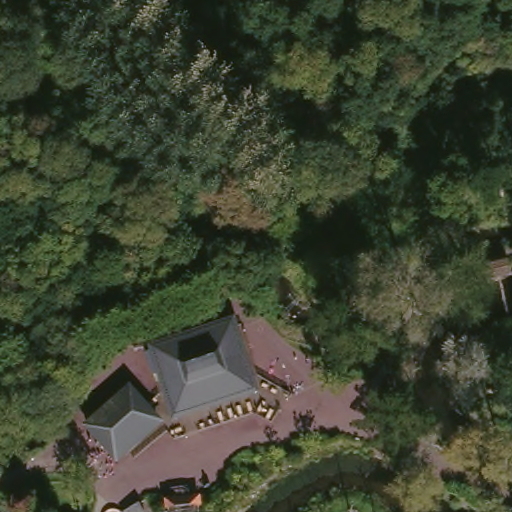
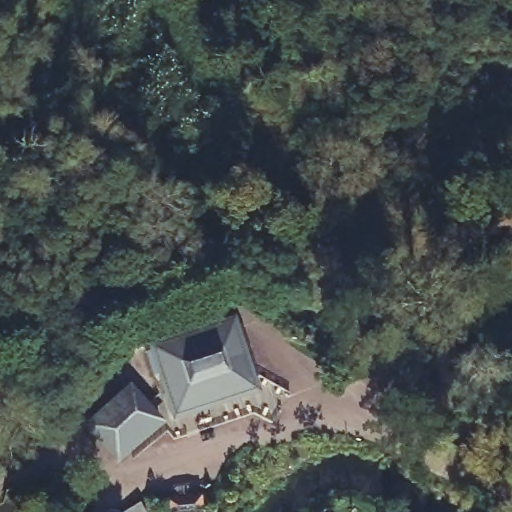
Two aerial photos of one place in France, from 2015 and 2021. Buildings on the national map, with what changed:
unchanged [(145,344),(225,319),(251,396),(168,422),(145,344)]
unchanged [(122,386),(157,428),(112,462),(77,426),(122,386)]

